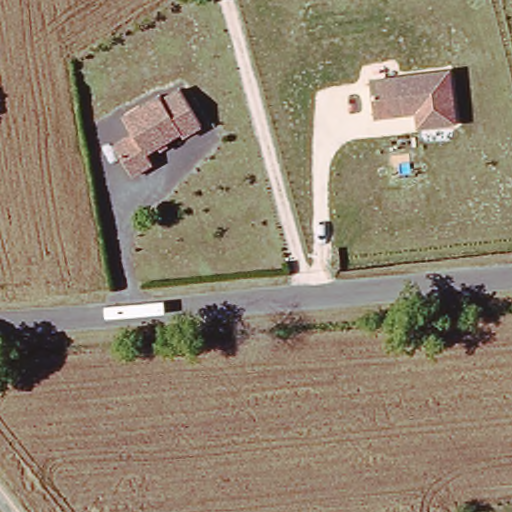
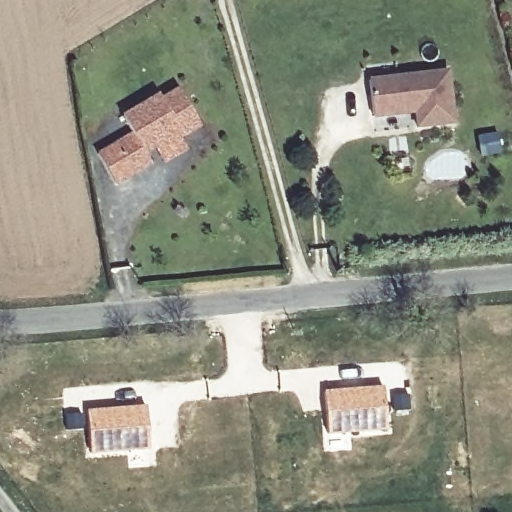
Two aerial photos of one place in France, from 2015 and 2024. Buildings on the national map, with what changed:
unchanged [(450,69),(457,124),(416,129),(414,115),(374,119),(369,79),(450,69)]
unchanged [(183,133),(148,152),(153,163),(133,174),(116,142),(137,132),(127,115),(165,95),(167,100),(185,90),(205,128),(186,137),(183,133)]
new [(384,385),(388,430),(326,433),(323,390),(384,385)]
new [(147,404),(149,449),(90,455),(86,409),(147,404)]

